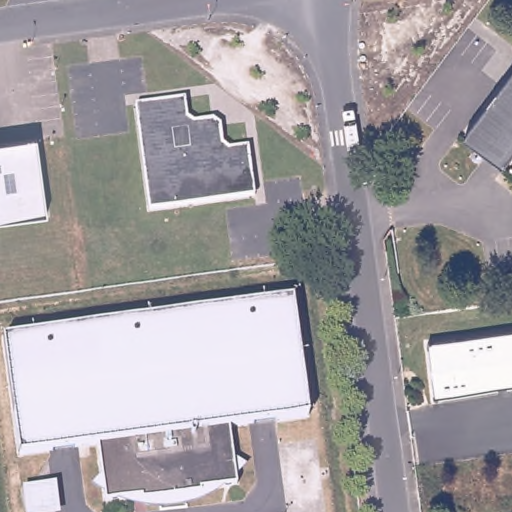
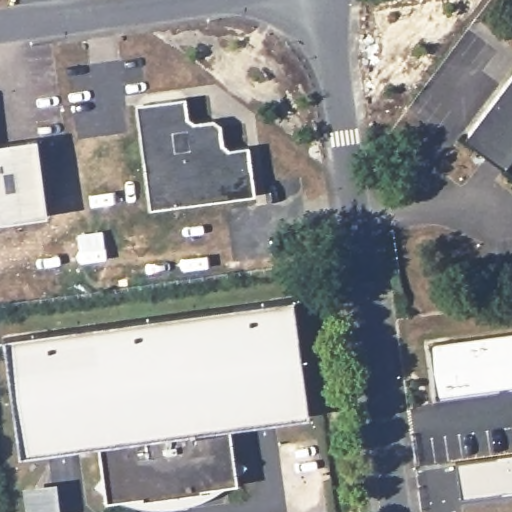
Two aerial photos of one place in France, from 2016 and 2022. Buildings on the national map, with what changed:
unchanged [(468,134),(512,76),(512,162),(509,165),(468,134)]
unchanged [(189,99),(191,117),(199,124),(217,121),(223,126),(225,145),(233,151),(252,149),(259,197),(155,212),(139,105),(189,99)]
unchanged [(37,136),(47,212),(0,219),(0,142),(37,136)]
unchanged [(294,300),(310,417),(232,428),(240,485),(204,491),(204,495),(150,502),(149,497),(113,503),(105,446),(21,458),(5,341),(294,300)]
unchanged [(512,388),(439,398),(431,345),(512,334),(512,388)]
new [(512,490),(456,497),(451,461),(512,453),(512,490)]
unchanged [(57,485),(58,512),(24,512),(18,490),(57,485)]

